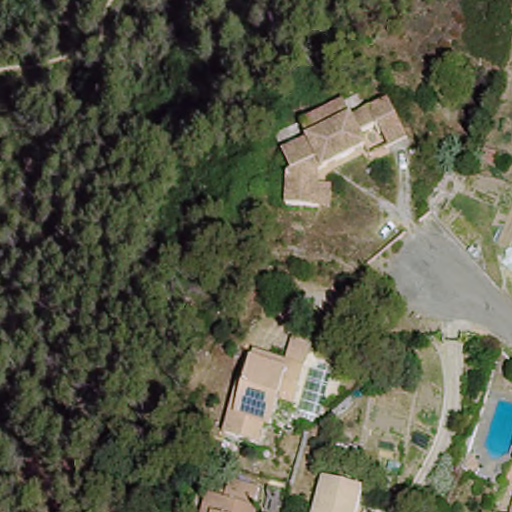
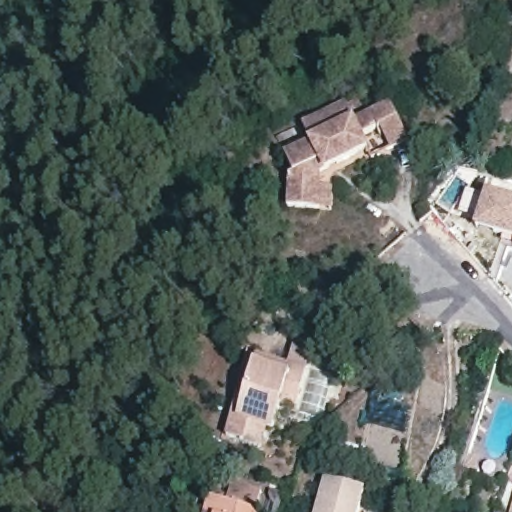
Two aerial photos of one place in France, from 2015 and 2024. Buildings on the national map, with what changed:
unchanged [(328,205),(319,204),(285,202),(287,174),(294,170),(284,154),(306,139),(300,125),(344,100),(352,114),(386,95),(407,132),(389,144),(379,124),(361,135),(366,145),(338,159),(333,153),(323,160),(327,168),(321,172),(320,184),(330,185),(328,205)]
new [(512,199),(512,236),(494,229),(476,224),(479,217),(488,190),(512,199)]
unchanged [(261,358),(296,369),(311,373),(298,408),(285,403),(274,432),(268,429),(261,448),(228,436),(241,398),(245,386),(253,387),(260,364),(261,358)]
unchanged [(477,436),(484,448),(481,454),(465,450),(470,433),(477,436)]
unchanged [(136,474),(131,496),(119,494),(123,480),(115,479),(118,469),(136,474)]
unchanged [(321,474),(359,487),(353,512),(312,512),(321,474)]
unchanged [(213,498),(221,500),(259,512),(209,512),(213,498)]
unchanged [(512,509),(512,512),(511,512),(512,509)]

